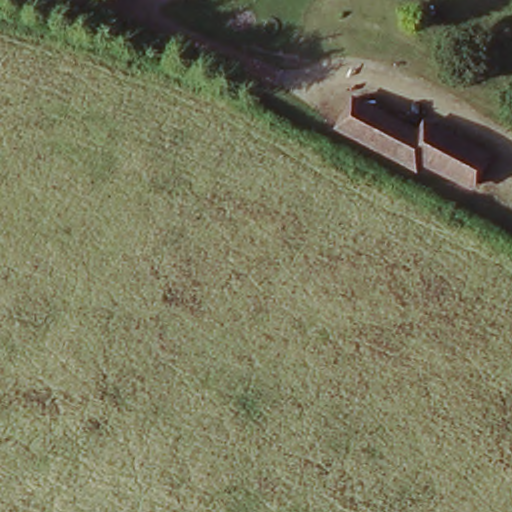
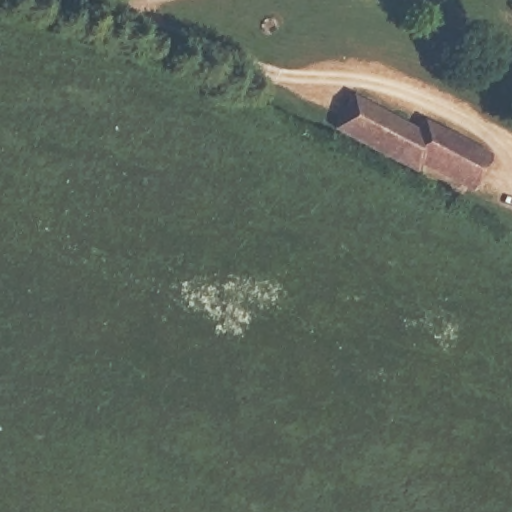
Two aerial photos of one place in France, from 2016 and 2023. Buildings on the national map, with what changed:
unchanged [(352,103),(422,133),(426,126),(490,153),(475,188),(411,160),(409,166),(340,137),(352,103)]

